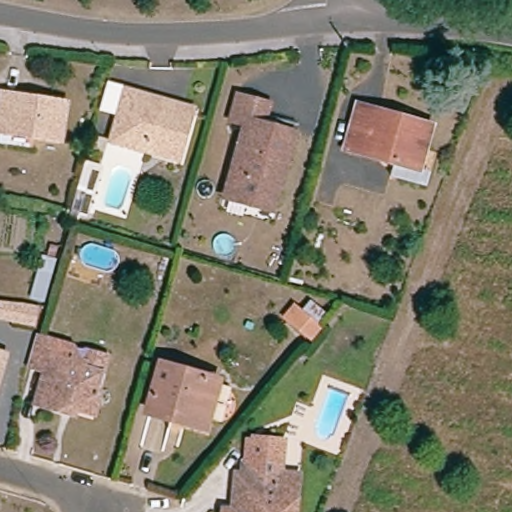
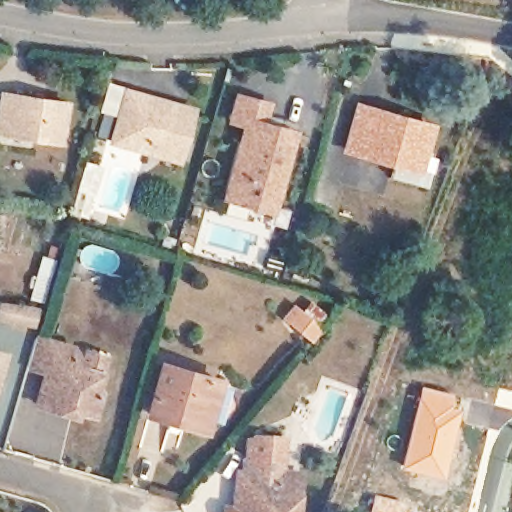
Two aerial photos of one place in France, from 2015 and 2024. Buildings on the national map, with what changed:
unchanged [(0,134),(0,127),(4,95),(39,101),(66,104),(65,111),(60,142),(0,134)]
unchanged [(161,166),(106,150),(120,97),(158,106),(186,114),(185,119),(178,146),(172,168),(161,166)]
unchanged [(271,132),(289,137),(269,212),(251,208),(250,212),(220,205),(240,129),(225,125),(230,102),(263,110),(257,133),(270,137),(271,132)]
unchanged [(435,128),(424,170),(353,150),(364,109),(435,128)]
new [(34,326),(13,322),(0,320),(0,307),(1,302),(16,305),(38,310),(34,326)]
unchanged [(312,344),(294,330),(305,316),(323,330),(312,344)]
unchanged [(59,413),(35,407),(44,375),(26,371),(35,339),(76,349),(74,359),(88,362),(90,353),(105,357),(100,374),(95,392),(101,394),(95,415),(73,410),(71,416),(59,413)]
unchanged [(9,361),(0,392),(0,358),(9,361)]
unchanged [(150,415),(163,367),(218,382),(206,423),(175,414),(173,421),(150,415)]
new [(422,385),(460,397),(441,477),(400,467),(422,385)]
unchanged [(230,480),(243,481),(246,444),(251,444),(251,440),(278,441),(275,475),(293,476),(292,500),(291,512),(229,512),(229,507),(230,480)]
new [(414,512),(369,512),(374,495),(414,512)]
unchanged [(229,512),(219,512),(219,511),(229,512)]

